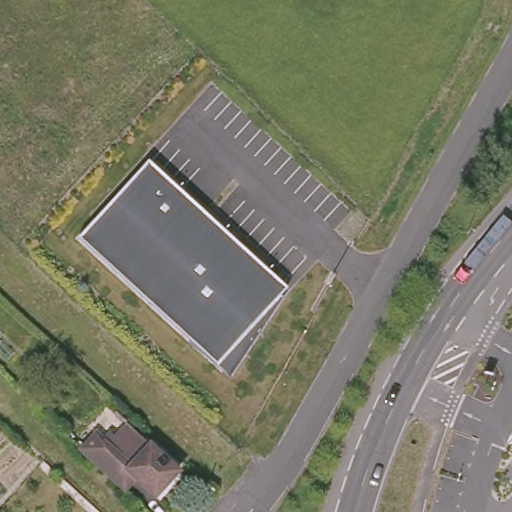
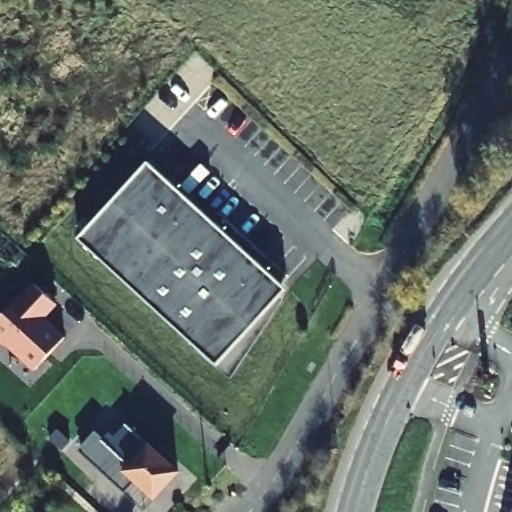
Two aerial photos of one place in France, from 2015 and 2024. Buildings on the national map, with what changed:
unchanged [(80,237),(149,162),(287,287),(281,295),(284,297),(232,377),(217,364),(80,237)]
new [(0,340),(0,318),(34,281),(59,304),(47,317),(67,335),(35,371),(0,340)]
unchanged [(135,464),(107,435),(115,427),(120,431),(135,419),(182,470),(157,493),(139,474),(132,467),(135,464)]
unchanged [(84,442),(95,431),(102,438),(132,467),(139,474),(126,487),(84,442)]

